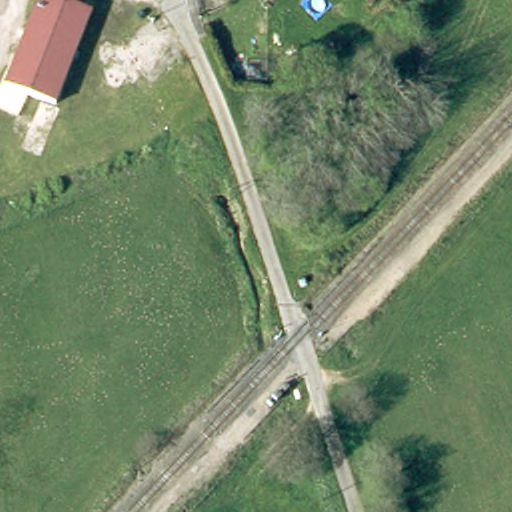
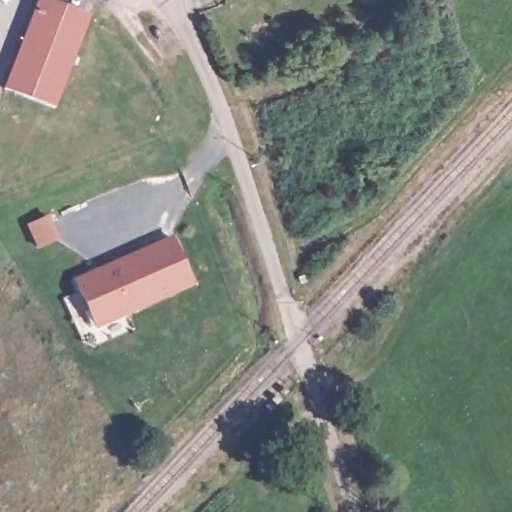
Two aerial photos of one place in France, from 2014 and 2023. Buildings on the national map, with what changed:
unchanged [(47,108),(0,90),(0,80),(29,0),(40,0),(82,21),(47,108)]
new [(195,283),(95,326),(73,277),(173,233),(195,283)]

